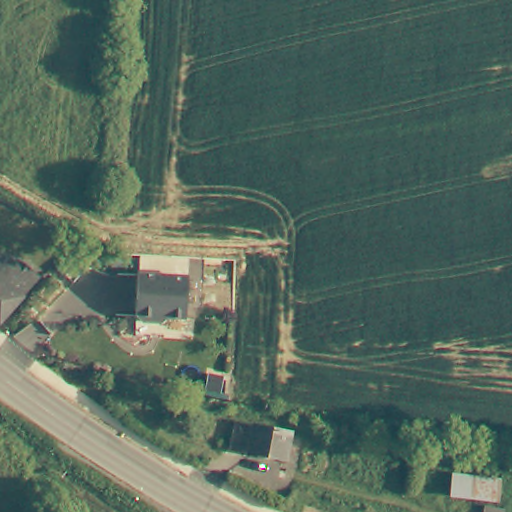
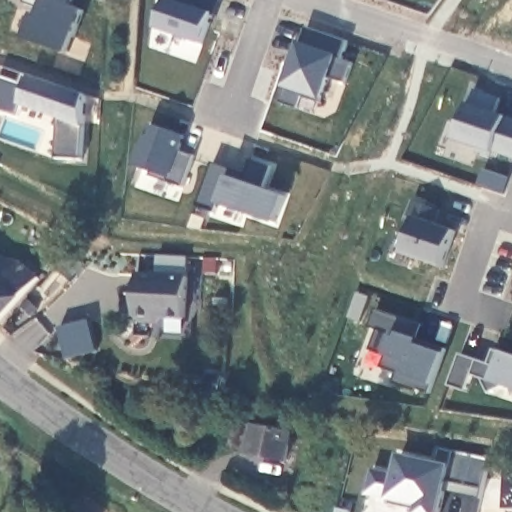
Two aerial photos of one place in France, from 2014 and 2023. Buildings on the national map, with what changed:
new [(165,0),(219,0),(214,14),(212,13),(202,41),(156,26),(165,0)]
new [(299,44),(306,25),(348,40),(342,57),(352,61),(345,81),(328,76),(320,101),(302,95),(298,107),(279,101),(292,64),(299,44)]
new [(23,71),(1,64),(1,62),(84,91),(81,157),(55,156),(57,115),(21,102),(18,114),(0,107),(0,72),(20,79),(23,71)]
new [(494,152),(457,140),(469,104),(474,89),(501,99),(496,114),(507,117),(512,119),(512,158),(494,152)]
new [(183,134),(178,147),(193,153),(182,185),(149,174),(151,169),(136,164),(137,158),(149,122),(183,134)]
new [(271,165),(263,187),(283,194),(274,221),(215,200),(212,210),(196,205),(211,159),(230,166),(244,170),(241,180),(249,157),(271,165)]
new [(443,266),(404,252),(411,230),(405,227),(413,201),(443,211),(439,225),(456,231),(443,266)]
unchanged [(38,275),(0,318),(0,254),(19,258),(38,275)]
unchanged [(185,315),(156,313),(152,318),(139,317),(135,313),(137,271),(187,273),(185,315)]
new [(378,330),(371,327),(377,310),(423,325),(417,343),(445,352),(434,385),(431,393),(420,389),(419,392),(396,383),(400,373),(384,368),(388,355),(373,350),(378,330)]
new [(83,322),(87,353),(56,357),(52,326),(83,322)]
new [(451,385),(462,354),(490,363),(495,350),(502,352),(503,350),(512,353),(512,388),(504,385),(492,391),(486,378),(473,375),(467,390),(451,385)]
unchanged [(286,456),(229,445),(234,418),(292,428),(286,456)]
new [(442,512),(420,512),(421,505),(375,495),(369,495),(374,470),(380,471),(397,475),(401,455),(437,463),(441,447),(492,458),(485,490),(449,482),(442,512)]

